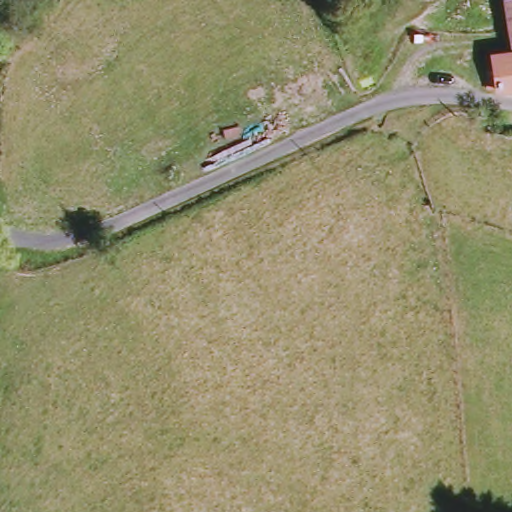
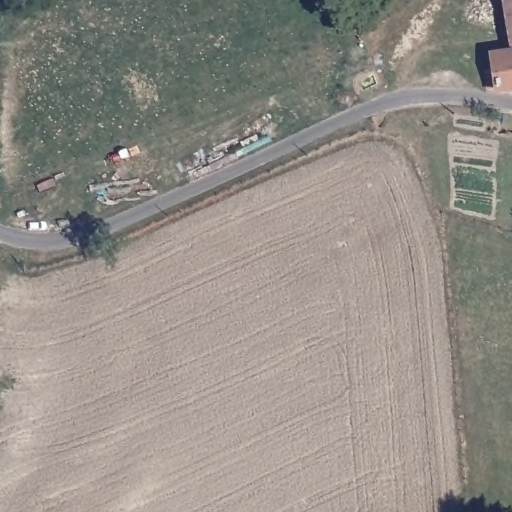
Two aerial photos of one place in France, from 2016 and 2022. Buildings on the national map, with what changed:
unchanged [(507,0),(512,0),(512,32),(507,0)]
unchanged [(495,55),(512,53),(512,95),(496,93),(495,55)]

